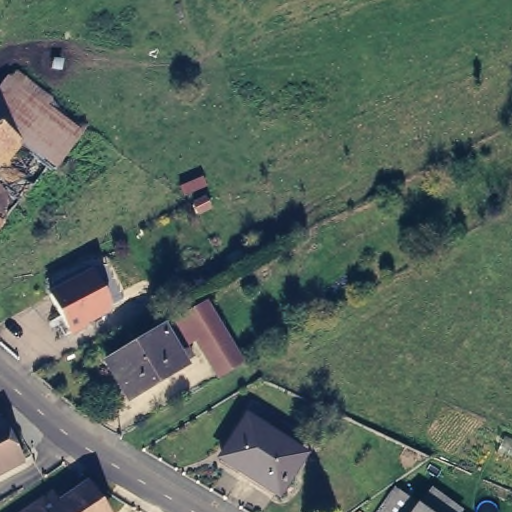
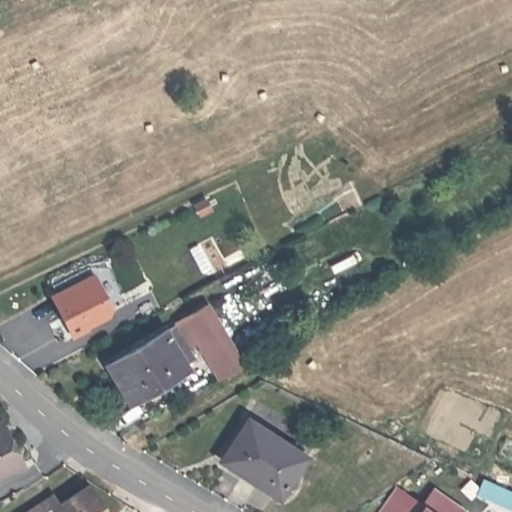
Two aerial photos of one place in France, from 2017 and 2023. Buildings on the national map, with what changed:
demolished [(8,66),(92,124),(56,171),(47,164),(5,222),(0,227),(0,79),(8,66)]
unchanged [(94,269),(121,321),(77,344),(50,294),(94,269)]
unchanged [(197,346),(190,349),(175,320),(185,316),(212,302),(247,365),(219,381),(197,346)]
unchanged [(170,326),(188,358),(180,363),(181,368),(125,400),(105,364),(170,326)]
unchanged [(296,458),(271,495),(218,459),(245,422),(296,458)]
unchanged [(19,463),(0,472),(0,426),(19,463)]
unchanged [(461,509),(459,512),(380,512),(401,486),(423,504),(437,488),(461,509)]
unchanged [(52,503),(57,509),(86,492),(100,512),(37,512),(52,503)]

